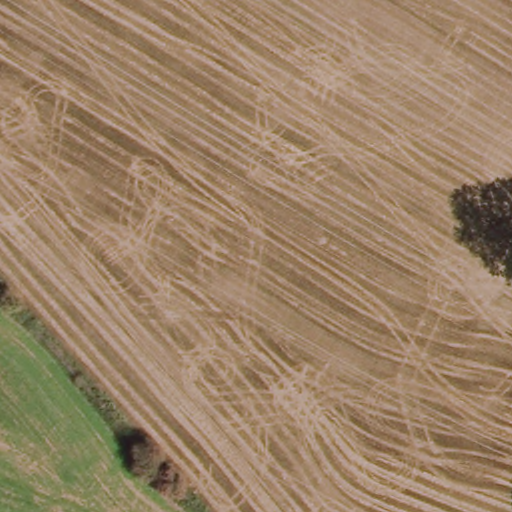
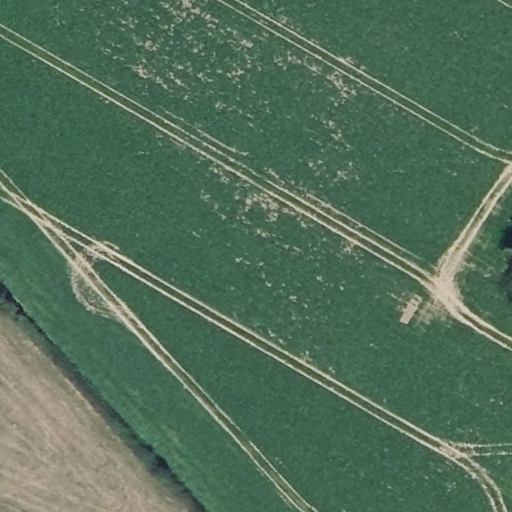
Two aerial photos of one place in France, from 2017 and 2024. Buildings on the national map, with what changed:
[]

